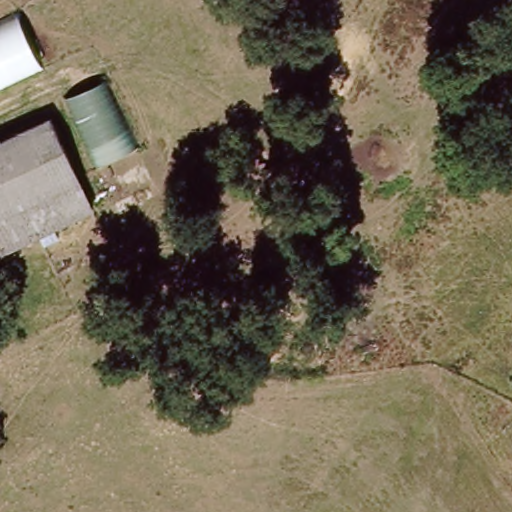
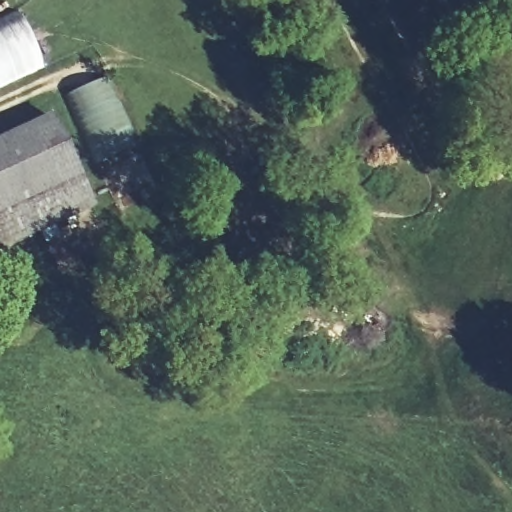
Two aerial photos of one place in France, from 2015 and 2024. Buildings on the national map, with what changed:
unchanged [(0,23),(17,15),(39,64),(0,82),(0,23)]
unchanged [(67,102),(102,84),(134,151),(97,170),(67,102)]
unchanged [(95,209),(4,252),(0,254),(0,145),(52,120),(95,209)]

